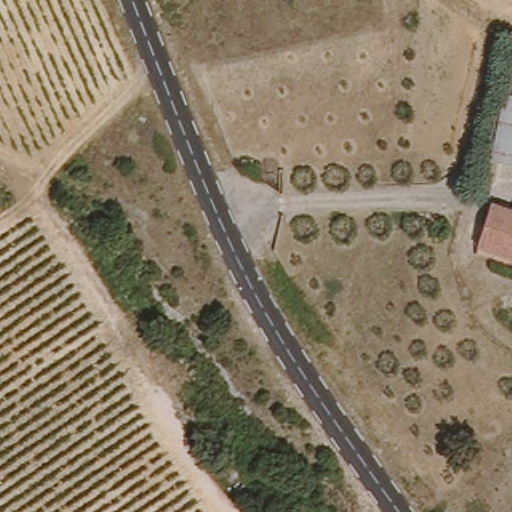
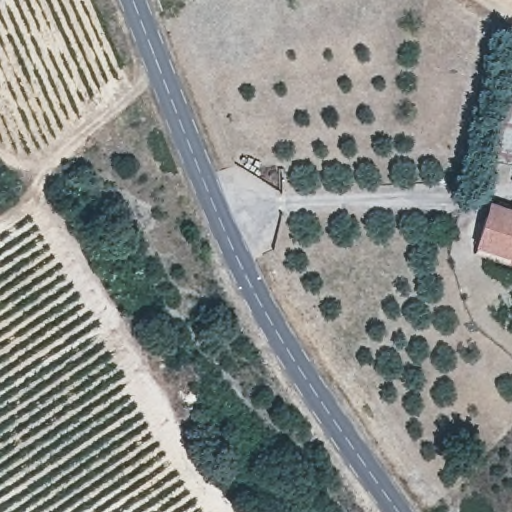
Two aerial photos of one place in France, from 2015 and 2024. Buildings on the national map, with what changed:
unchanged [(512,94),(512,164),(485,158),(499,91),(512,94)]
unchanged [(474,239),(488,199),(512,206),(512,265),(469,251),(474,239)]

